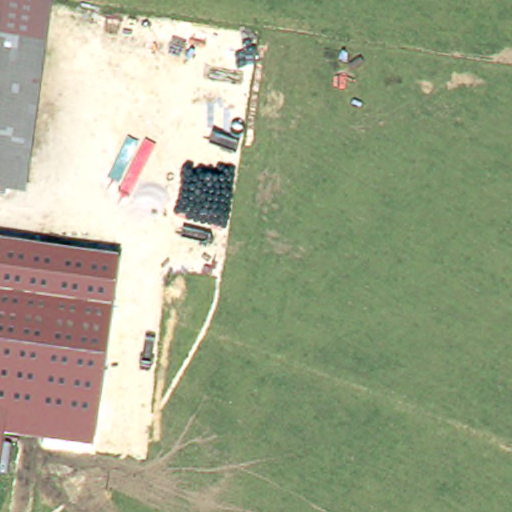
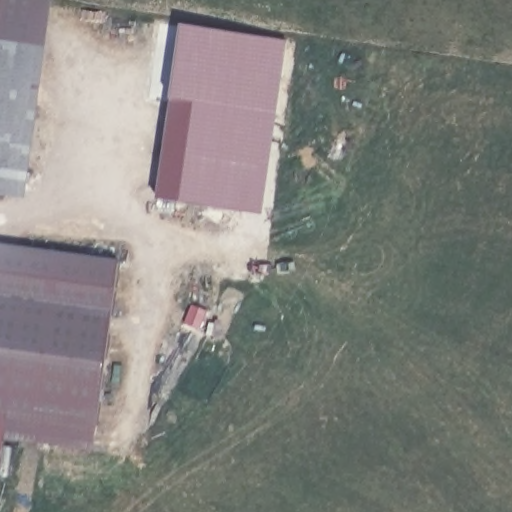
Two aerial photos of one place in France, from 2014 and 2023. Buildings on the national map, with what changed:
unchanged [(52,2),(44,43),(0,38),(0,0),(38,0),(52,2)]
new [(184,24),(288,38),(277,113),(256,110),(174,98),(184,24)]
unchanged [(0,189),(0,38),(44,43),(23,190),(0,189)]
new [(174,98),(256,110),(241,209),(159,197),(174,98)]
new [(256,110),(277,113),(263,213),(241,209),(256,110)]
unchanged [(119,260),(90,449),(4,437),(0,472),(0,244),(119,260)]

